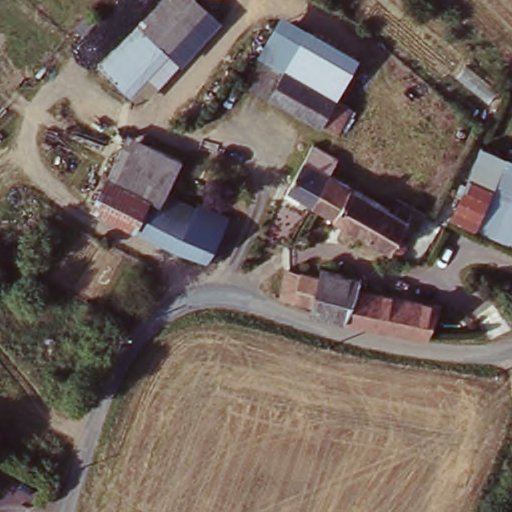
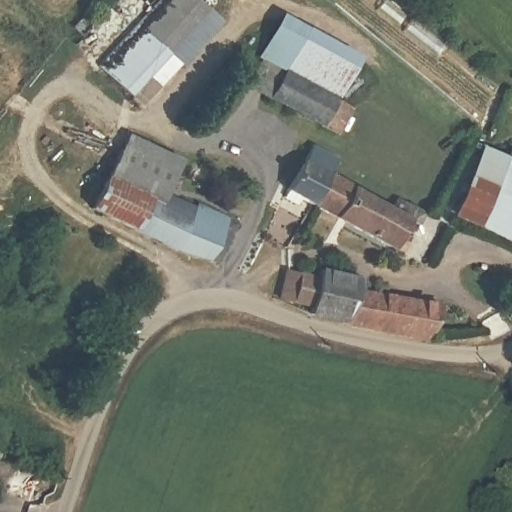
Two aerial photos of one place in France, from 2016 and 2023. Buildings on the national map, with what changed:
unchanged [(164,0),(202,0),(161,43),(173,54),(133,98),(102,65),(164,0)]
unchanged [(173,54),(161,43),(202,0),(222,21),(141,106),(133,98),(173,54)]
unchanged [(362,56),(337,99),(323,91),(272,64),(258,55),(283,13),(362,56)]
unchanged [(234,80),(253,53),(272,64),(323,91),(342,102),(328,126),(234,80)]
unchanged [(124,135),(169,158),(155,188),(176,198),(195,208),(199,198),(236,216),(214,263),(212,266),(162,246),(88,209),(124,135)]
unchanged [(512,150),(512,246),(453,217),(483,144),(510,159),(512,150)]
unchanged [(299,202),(296,207),(286,201),(289,196),(288,195),(313,151),(329,160),(344,169),(335,183),(319,212),(299,202)]
unchanged [(412,263),(319,212),(335,183),(392,214),(399,200),(427,215),(420,229),(429,233),(412,263)]
unchanged [(310,301),(284,293),(293,261),(322,270),(323,262),(367,275),(366,284),(443,308),(431,341),(384,332),(317,315),(307,310),(310,301)]
unchanged [(512,307),(512,322),(502,321),(504,306),(512,307)]
unchanged [(4,454),(0,462),(0,452),(4,454)]

